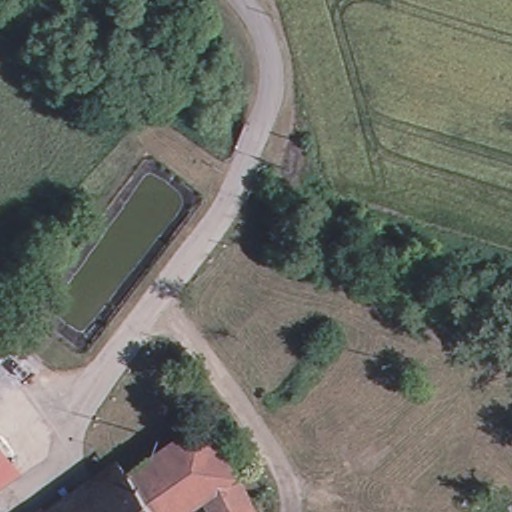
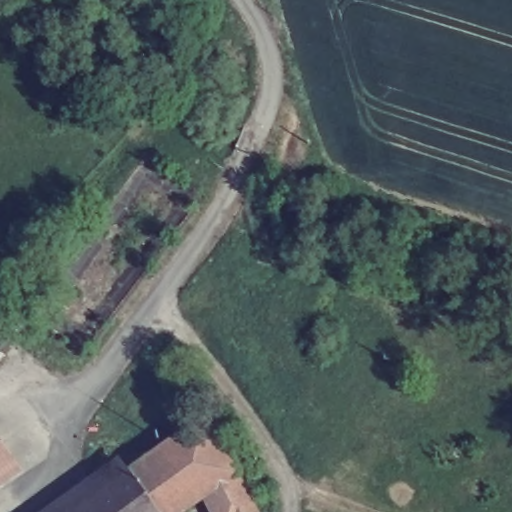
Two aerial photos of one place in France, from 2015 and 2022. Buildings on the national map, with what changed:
unchanged [(192,512),(155,512),(135,472),(204,423),(230,465),(255,512),(208,512),(204,504),(192,512)]
unchanged [(0,476),(0,453),(11,469),(0,476)]
unchanged [(107,512),(98,499),(135,472),(155,512),(107,512)]
unchanged [(83,512),(82,510),(98,499),(107,512),(83,512)]
unchanged [(83,512),(79,512),(82,510),(83,512)]

